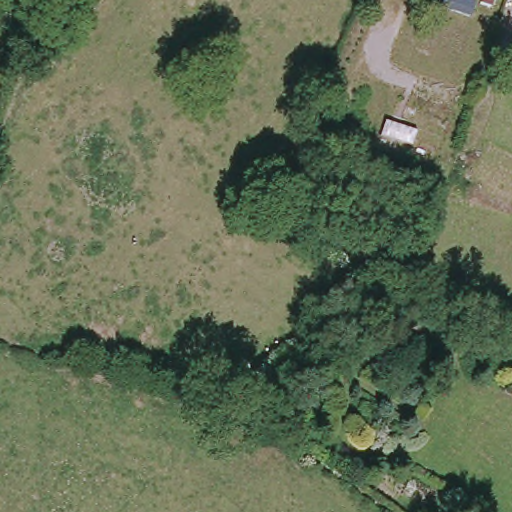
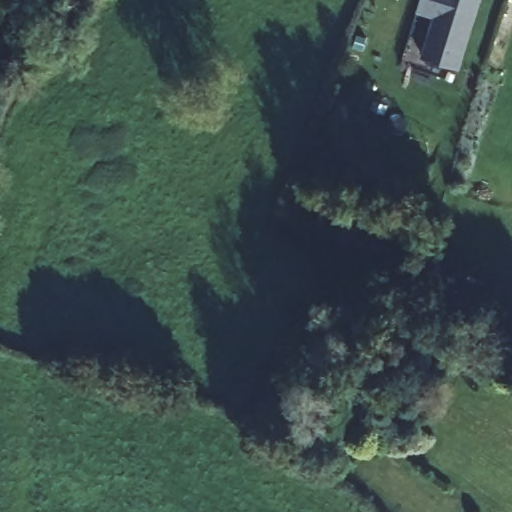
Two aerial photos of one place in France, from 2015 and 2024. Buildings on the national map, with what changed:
new [(460,68),(419,55),(432,16),(417,11),(420,0),(481,0),(460,68)]

